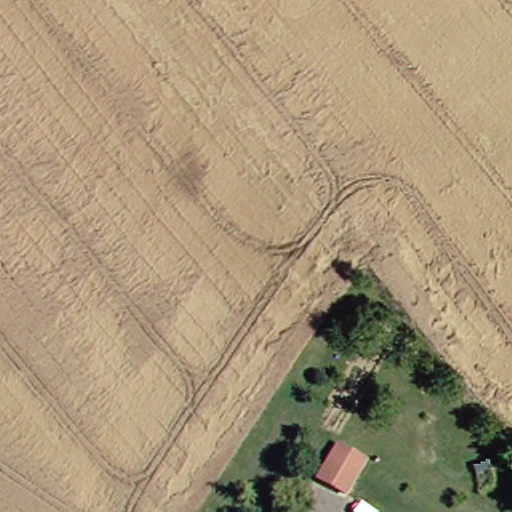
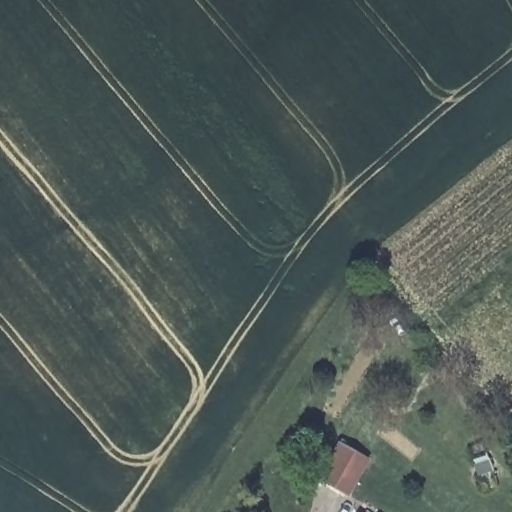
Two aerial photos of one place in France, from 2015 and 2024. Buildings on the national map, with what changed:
unchanged [(357,461),(338,500),(310,485),(328,448),(357,461)]

